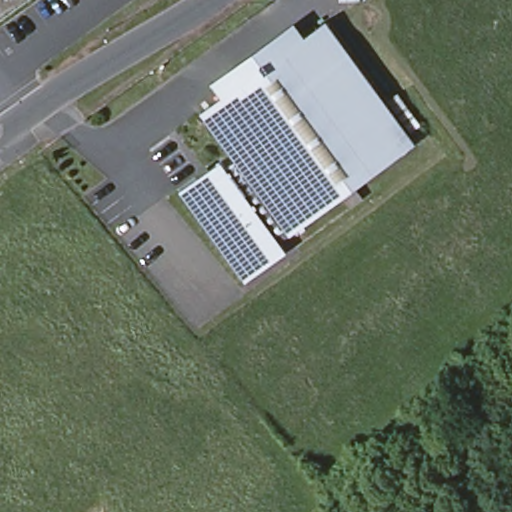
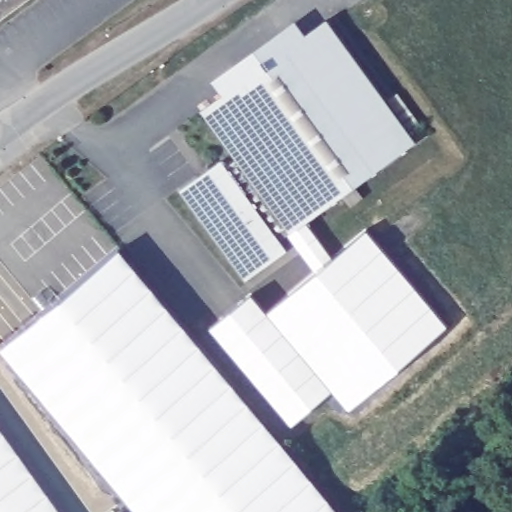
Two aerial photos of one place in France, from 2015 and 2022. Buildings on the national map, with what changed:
unchanged [(214,156),(219,162),(231,154),(195,105),(319,13),(411,139),(286,229),(280,222),(269,230),(281,246),(239,275),(173,185),(214,156)]
new [(119,248),(340,512),(140,512),(3,348),(119,248)]
new [(211,328),(251,294),(330,392),(291,424),(211,328)]
new [(60,512),(0,512),(0,429),(60,512)]

